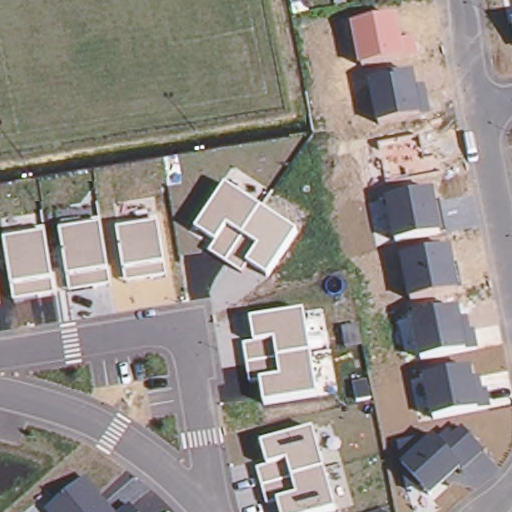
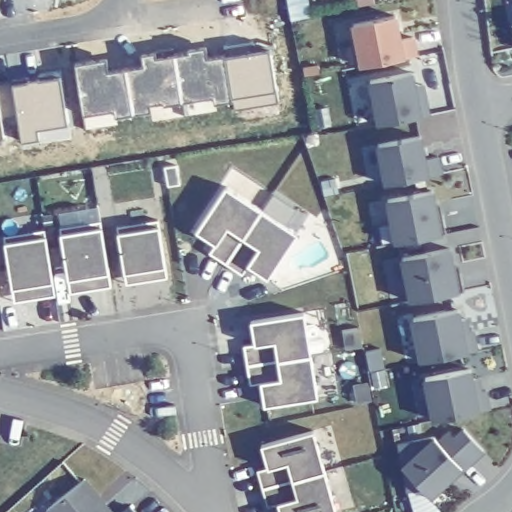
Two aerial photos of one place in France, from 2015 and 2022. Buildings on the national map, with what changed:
unchanged [(359,65),(352,24),(397,14),(402,40),(415,36),(419,54),(406,56),(359,65)]
new [(271,49),(276,91),(0,134),(0,87),(271,49)]
unchanged [(370,80),(414,72),(416,84),(426,82),(430,111),(420,114),(421,117),(377,124),(370,80)]
unchanged [(380,144),(420,135),(424,156),(438,154),(441,172),(386,184),(380,144)]
unchanged [(261,207),(243,236),(225,262),(208,252),(213,243),(197,231),(225,187),(261,207)]
unchanged [(388,199),(434,190),(436,201),(440,201),(446,231),(442,233),(394,241),(388,199)]
unchanged [(157,218),(158,227),(164,267),(166,277),(127,284),(123,272),(118,233),(117,223),(157,218)]
unchanged [(99,220),(101,228),(107,272),(110,286),(70,292),(67,278),(60,235),(60,226),(99,220)]
unchanged [(43,229),(45,236),(51,280),(54,295),(15,301),(11,287),(5,244),(3,235),(43,229)]
unchanged [(403,255),(453,246),(460,292),(409,300),(403,255)]
unchanged [(413,317),(460,307),(462,316),(468,316),(470,328),(476,328),(479,347),(471,349),(471,353),(421,360),(413,317)]
unchanged [(304,312),(318,397),(264,406),(260,383),(250,385),(244,345),(254,343),(251,321),(304,312)]
unchanged [(425,376),(472,366),(474,375),(481,375),(484,390),(489,390),(491,406),(479,408),(480,411),(433,420),(425,376)]
unchanged [(423,488),(405,490),(402,466),(399,441),(437,435),(437,440),(448,430),(453,435),(463,426),(485,450),(463,468),(432,497),(423,488)]
unchanged [(336,512),(280,512),(278,504),(267,506),(258,471),(267,466),(262,445),(314,430),(336,512)]
unchanged [(117,512),(48,512),(48,511),(88,476),(117,512)]
unchanged [(137,512),(120,512),(131,505),(137,512)]

